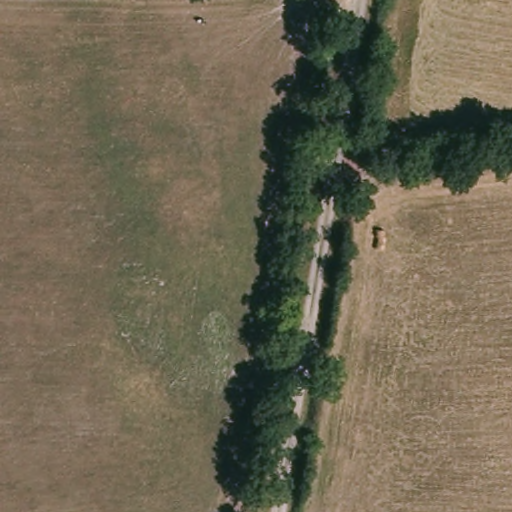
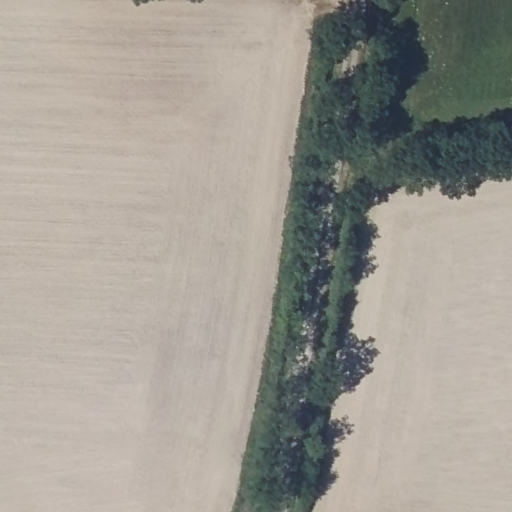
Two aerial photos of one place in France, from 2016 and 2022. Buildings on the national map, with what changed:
[]

